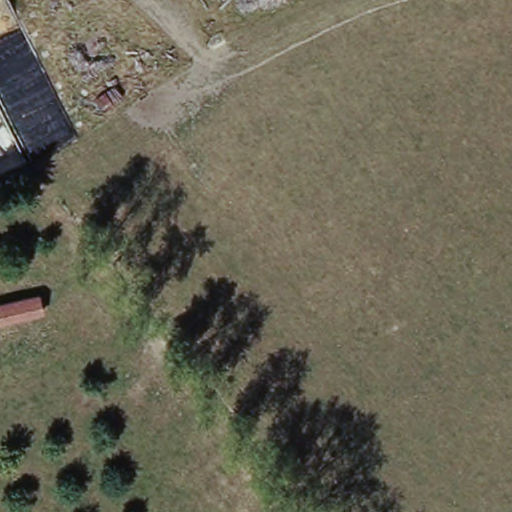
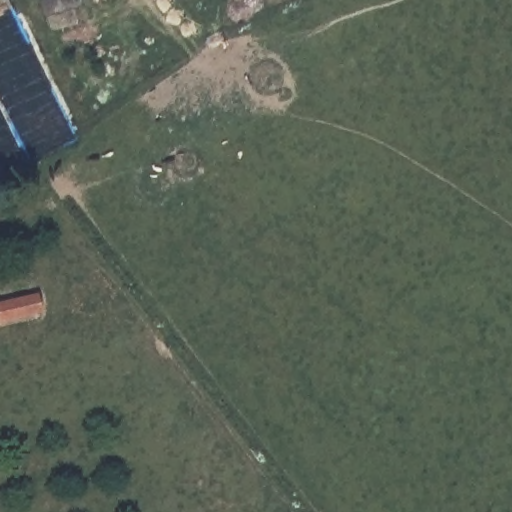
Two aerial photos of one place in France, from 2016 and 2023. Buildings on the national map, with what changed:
unchanged [(41,296),(46,317),(0,329),(0,307),(41,296)]

